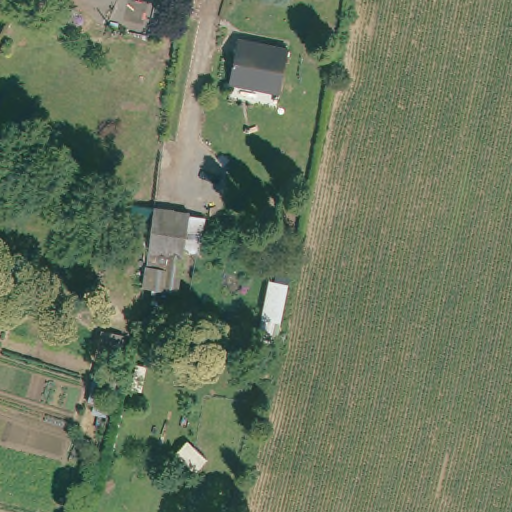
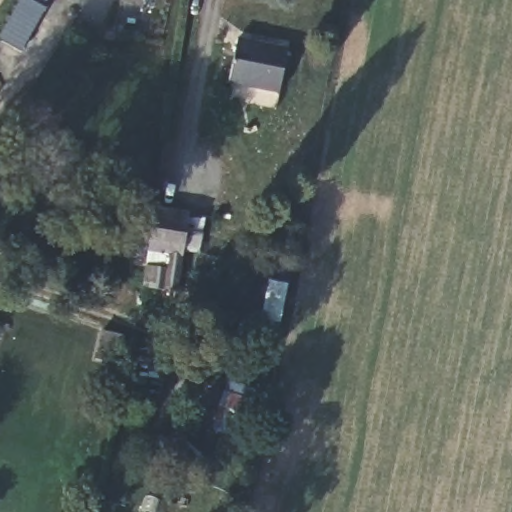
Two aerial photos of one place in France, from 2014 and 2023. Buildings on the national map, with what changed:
new [(0,36),(18,0),(27,0),(36,6),(21,49),(0,39),(0,36)]
unchanged [(235,75),(244,35),(290,45),(282,85),(235,75)]
unchanged [(152,200),(210,211),(203,249),(189,246),(182,288),(137,282),(152,200)]

